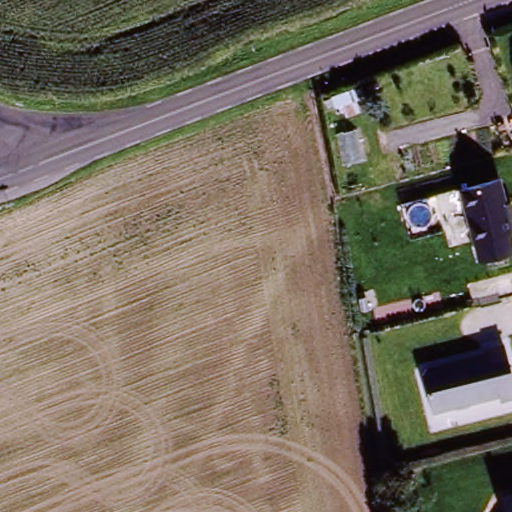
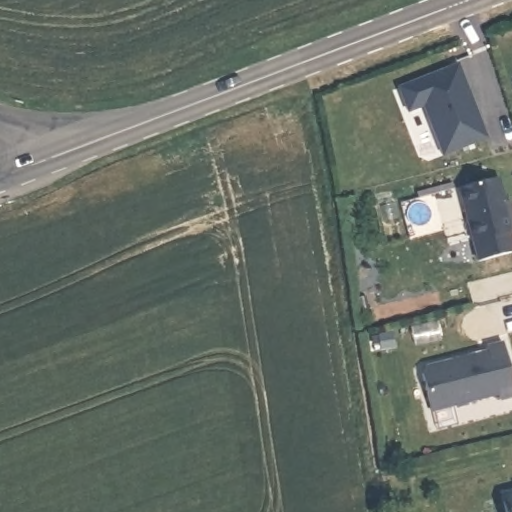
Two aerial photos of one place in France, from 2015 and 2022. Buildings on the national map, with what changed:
new [(487,140),(442,157),(424,108),(406,114),(397,86),(456,66),(487,140)]
unchanged [(503,203),(511,202),(512,204),(512,233),(511,233),(512,235),(512,256),(476,264),(459,190),(498,180),(503,203)]
unchanged [(482,343),(501,340),(512,378),(512,398),(501,401),(499,397),(433,414),(420,367),(484,349),(482,343)]
unchanged [(512,512),(504,512),(498,493),(512,490),(512,512)]
unchanged [(502,507),(504,512),(501,512),(502,507)]

